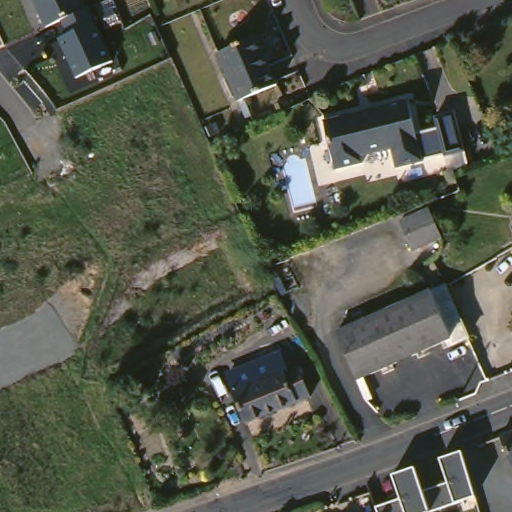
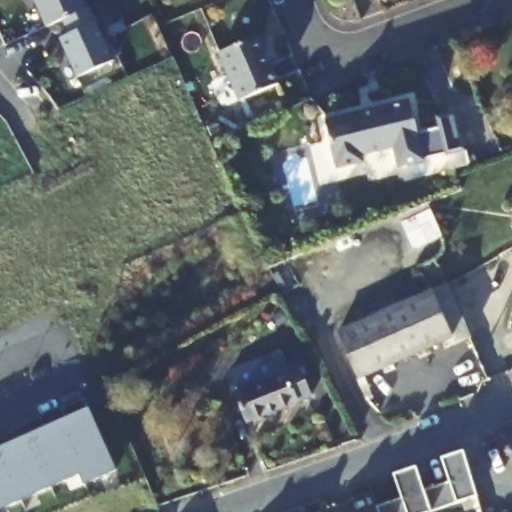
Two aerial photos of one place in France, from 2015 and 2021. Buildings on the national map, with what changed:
unchanged [(60,37),(69,33),(61,18),(47,25),(34,0),(88,0),(114,60),(78,75),(60,37)]
unchanged [(223,49),(262,32),(283,80),(244,98),(223,49)]
unchanged [(366,109),(380,106),(416,98),(430,159),(405,165),(400,145),(376,150),(360,111),(366,109)]
unchanged [(442,114),(462,109),(471,149),(451,153),(442,114)]
unchanged [(369,153),(370,161),(342,167),(331,118),(360,111),(376,150),(369,153)]
unchanged [(401,223),(430,210),(442,238),(413,251),(401,223)]
unchanged [(436,287),(451,280),(475,334),(460,340),(455,343),(452,337),(369,373),(378,393),(371,396),(363,376),(364,376),(343,328),(436,287)]
unchanged [(235,374),(290,353),(295,366),(305,362),(317,394),(251,419),(235,374)]
new [(10,432),(41,418),(46,429),(66,421),(60,409),(84,399),(89,410),(91,417),(0,458),(0,450),(15,443),(10,432)]
new [(116,472),(84,487),(79,477),(2,512),(0,512),(0,458),(91,417),(116,472)]
unchanged [(505,438),(512,436),(512,456),(505,438)]
unchanged [(449,484),(440,460),(462,452),(477,498),(436,512),(431,512),(425,493),(449,484)]
unchanged [(377,511),(377,510),(402,501),(393,478),(415,469),(425,493),(431,512),(378,512),(377,511)]

